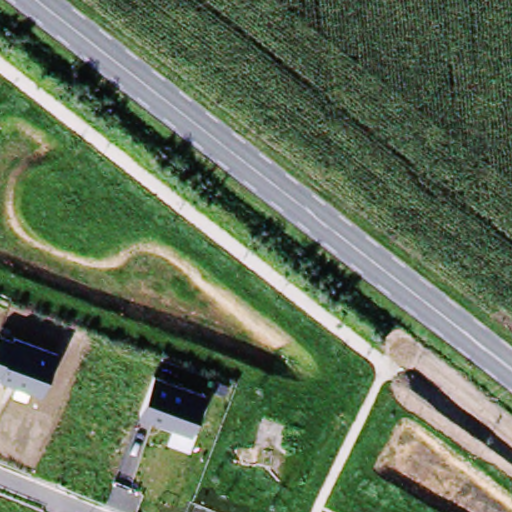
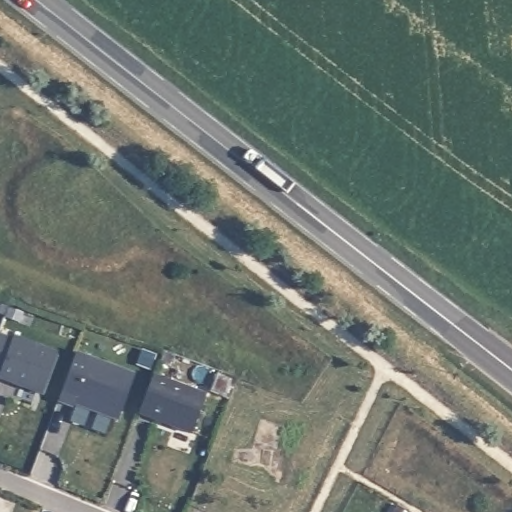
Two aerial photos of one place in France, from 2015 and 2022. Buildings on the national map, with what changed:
unchanged [(43,394),(0,377),(0,374),(0,335),(13,338),(14,335),(58,351),(43,394)]
new [(75,404),(73,408),(58,403),(76,354),(135,376),(118,421),(75,404)]
new [(210,392),(216,375),(232,381),(226,398),(210,392)]
unchanged [(193,434),(141,414),(155,376),(207,395),(193,434)]

